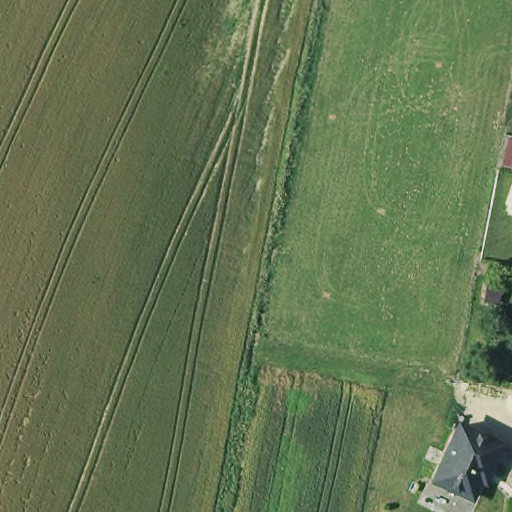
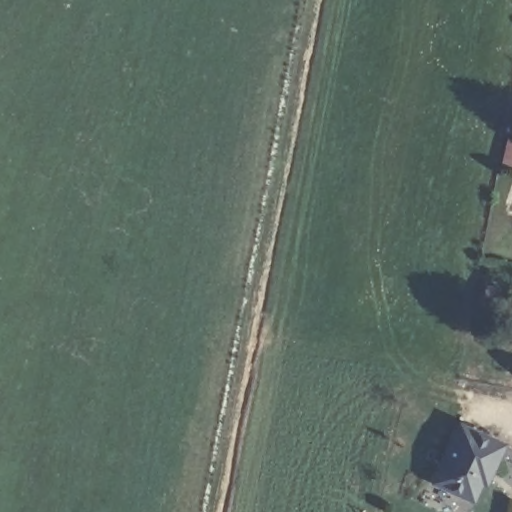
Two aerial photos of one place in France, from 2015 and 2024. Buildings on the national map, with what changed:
unchanged [(509,139),(512,140),(512,170),(504,168),(509,139)]
unchanged [(483,472),(474,491),(439,474),(440,471),(463,420),(504,438),(494,457),(487,474),(483,472)]

